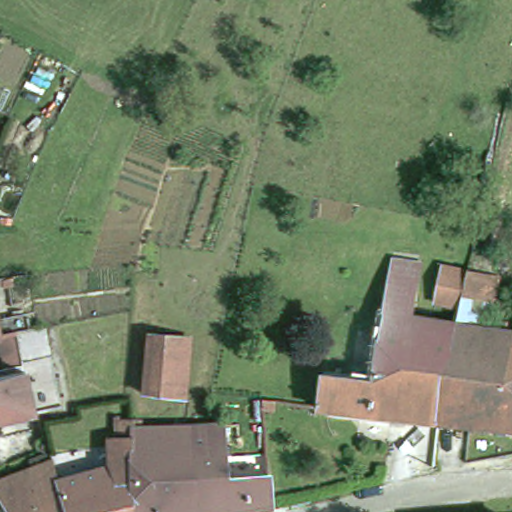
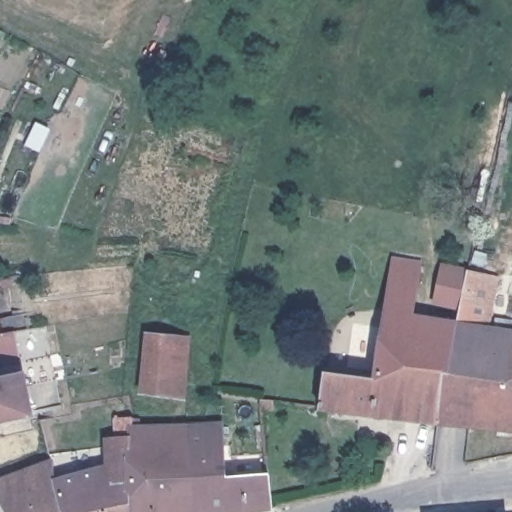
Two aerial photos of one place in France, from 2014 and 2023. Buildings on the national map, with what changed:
unchanged [(1,37),(0,39),(0,37),(1,37)]
unchanged [(368,328),(387,333),(397,258),(426,263),(419,315),(461,322),(457,342),(444,412),(443,416),(442,423),(324,407),(329,370),(355,373),(380,378),(384,354),(365,351),(368,328)]
unchanged [(512,321),(512,430),(511,430),(510,436),(501,435),(502,428),(442,423),(443,416),(444,412),(457,342),(461,322),(465,307),(440,301),(447,267),(472,271),(501,277),(492,319),(512,321)]
unchanged [(27,363),(10,367),(3,335),(0,335),(0,302),(2,322),(5,334),(20,331),(26,361),(27,363)]
unchanged [(157,332),(187,335),(182,396),(151,392),(157,332)]
unchanged [(16,375),(26,415),(0,421),(0,378),(16,375)]
unchanged [(120,417),(138,417),(138,427),(193,425),(200,512),(136,512),(129,477),(121,436),(120,417)]
unchanged [(193,425),(228,423),(229,463),(273,461),(273,467),(277,505),(237,512),(200,512),(193,425)]
unchanged [(71,505),(62,480),(102,467),(114,470),(112,462),(111,436),(121,436),(129,477),(136,512),(74,512),(71,505)]
unchanged [(71,505),(74,512),(11,512),(0,493),(0,482),(57,460),(62,480),(71,505)]

